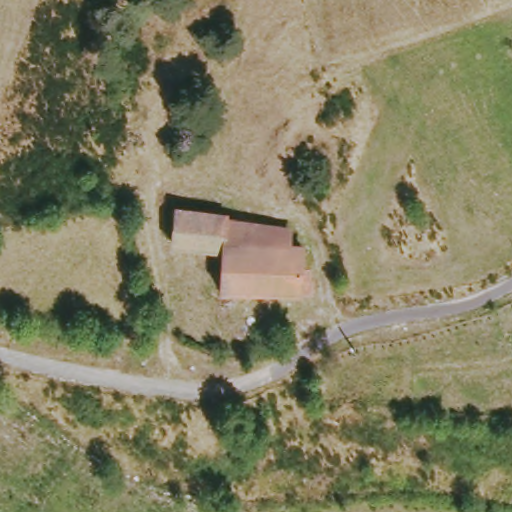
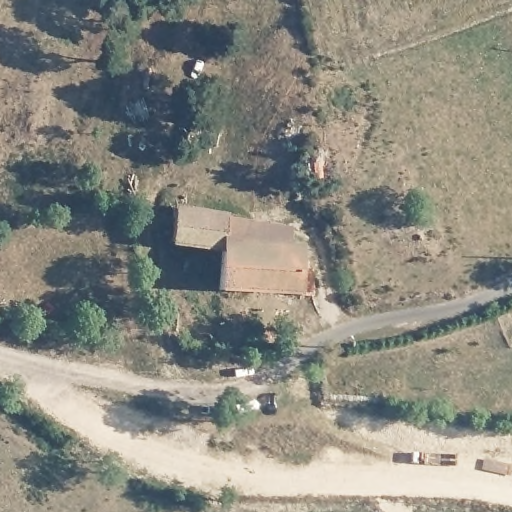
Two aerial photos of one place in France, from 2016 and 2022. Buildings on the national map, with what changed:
unchanged [(175,209),(288,230),(287,246),(287,260),(225,254),(171,248),(172,236),(175,209)]
unchanged [(287,260),(287,246),(303,248),(304,264),(318,265),(317,291),(222,292),(225,254),(287,260)]

